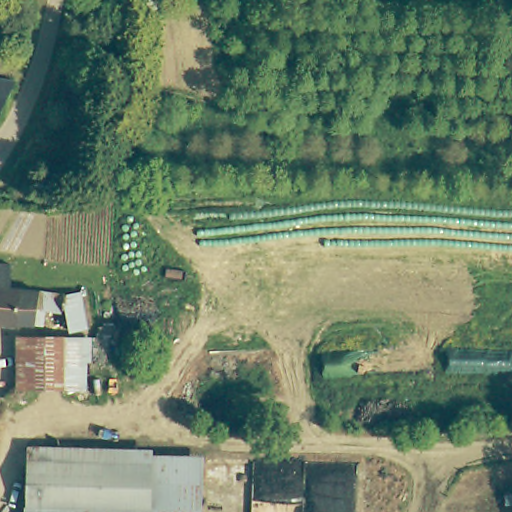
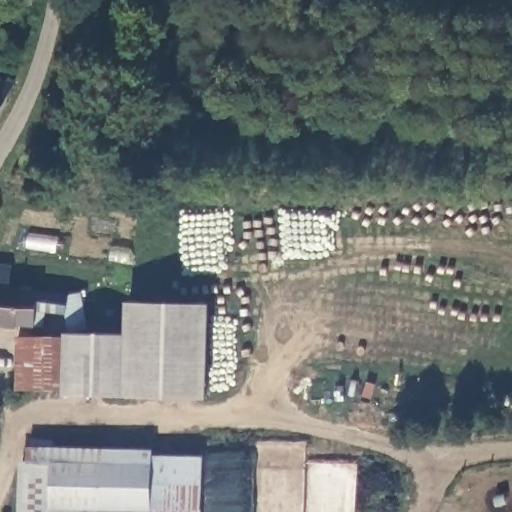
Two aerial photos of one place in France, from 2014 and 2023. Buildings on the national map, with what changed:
unchanged [(0,101),(0,81),(8,82),(0,101)]
unchanged [(6,290),(30,292),(59,294),(57,317),(39,316),(38,330),(0,327),(0,266),(8,267),(6,290)]
new [(70,294),(81,291),(94,332),(124,333),(125,300),(211,302),(207,398),(62,396),(62,390),(16,391),(16,336),(64,336),(64,331),(71,331),(65,313),(57,312),(59,294),(70,294)]
demolished [(64,293),(80,292),(82,316),(83,332),(66,334),(64,293)]
unchanged [(100,465),(201,470),(199,512),(24,512),(26,458),(27,446),(76,448),(101,450),(100,465)]

